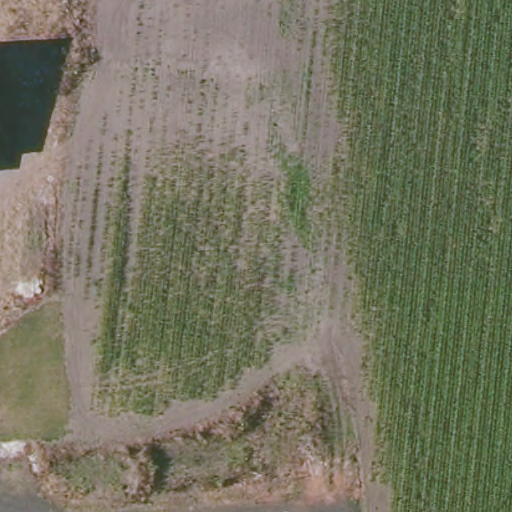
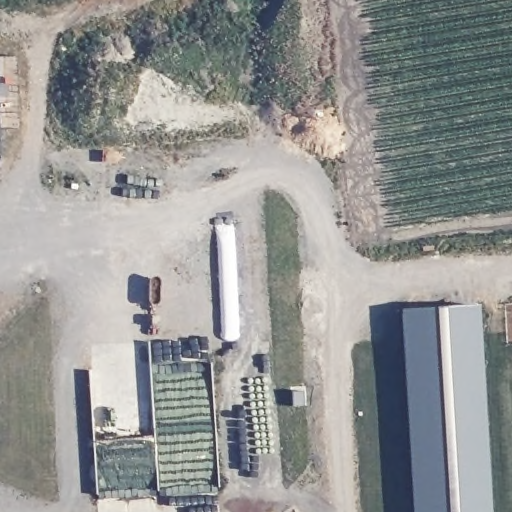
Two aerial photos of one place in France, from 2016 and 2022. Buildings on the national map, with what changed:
new [(402,309),(477,305),(490,512),(414,512),(402,309)]

